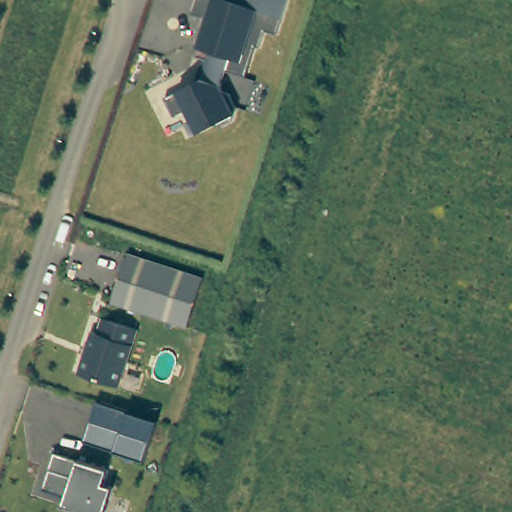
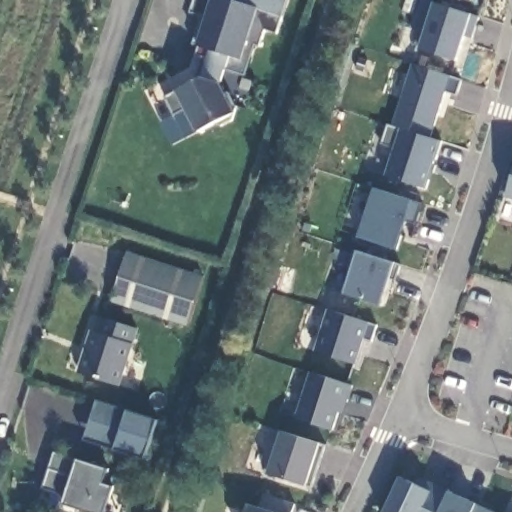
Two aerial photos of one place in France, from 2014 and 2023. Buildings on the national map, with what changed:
unchanged [(195,0),(289,0),(278,32),(267,29),(262,45),(257,44),(247,75),(228,69),(222,86),(224,89),(231,91),(238,105),(234,119),(222,125),(216,122),(200,130),(189,107),(175,114),(166,95),(203,76),(209,57),(197,54),(200,45),(194,42),(203,15),(191,11),(195,0)]
new [(427,0),(479,16),(472,39),(465,36),(457,61),(420,50),(426,33),(414,30),(424,0),(427,0)]
new [(457,95),(446,91),(431,139),(441,142),(426,188),(387,175),(396,149),(383,145),(389,126),(393,127),(412,65),(450,76),(461,80),(457,95)]
new [(433,165),(437,165),(434,173),(432,172),(431,171),(433,165)]
new [(512,187),(512,199),(508,198),(512,187)]
new [(413,239),(402,235),(397,250),(358,236),(373,189),(413,201),(422,205),(413,239)]
unchanged [(129,251),(205,276),(189,325),(112,300),(129,251)]
new [(358,252),(394,261),(381,305),(343,295),(358,252)]
new [(328,310),(376,325),(371,341),(363,337),(356,365),(315,351),(328,310)]
unchanged [(80,371),(94,329),(99,331),(104,315),(138,326),(120,383),(80,371)]
new [(311,373),(352,386),(344,413),(337,411),(332,430),(296,418),(311,373)]
unchanged [(85,438),(97,398),(128,408),(116,448),(85,438)]
unchanged [(146,458),(116,448),(128,408),(159,418),(146,458)]
new [(311,487),(306,485),(268,473),(282,433),(320,444),(325,445),(311,487)]
unchanged [(110,467),(105,481),(114,485),(105,512),(93,512),(64,502),(66,495),(42,487),(55,450),(110,467)]
new [(400,477),(416,485),(417,476),(451,492),(476,504),(477,501),(495,512),(383,512),(400,477)]
new [(291,512),(245,512),(247,505),(259,508),(263,495),(294,504),(291,512)]

